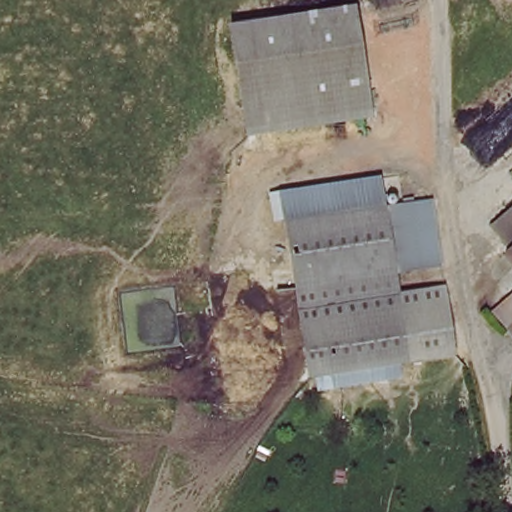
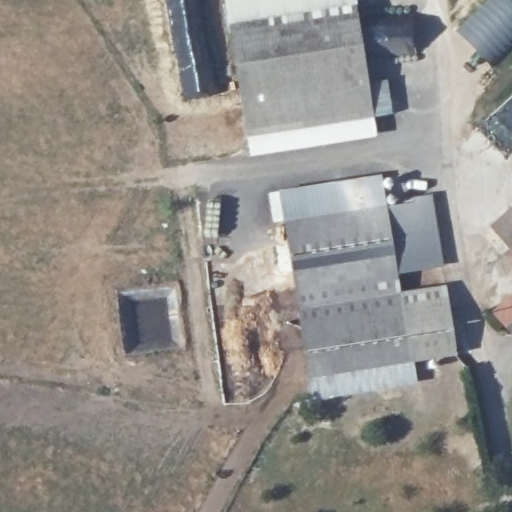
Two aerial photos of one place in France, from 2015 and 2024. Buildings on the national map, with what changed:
unchanged [(379,137),(250,159),(223,0),(356,0),(379,137)]
new [(485,0),(511,0),(512,2),(512,50),(494,68),(454,30),(485,0)]
new [(512,94),(512,153),(510,155),(481,122),(512,94)]
unchanged [(290,227),(285,201),(381,182),(387,209),(290,227)]
unchanged [(387,209),(430,200),(443,264),(400,272),(387,209)]
unchanged [(485,231),(512,205),(512,254),(511,255),(485,231)]
unchanged [(387,209),(400,272),(304,291),(290,227),(387,209)]
unchanged [(505,261),(511,255),(512,254),(512,267),(505,261)]
unchanged [(509,295),(512,291),(512,298),(509,295)]
unchanged [(448,294),(452,317),(406,323),(409,365),(308,381),(298,320),(448,294)]
unchanged [(512,309),(512,332),(511,333),(500,322),(512,309)]

